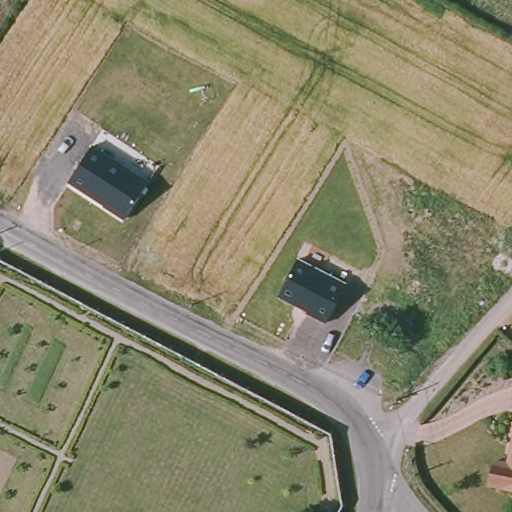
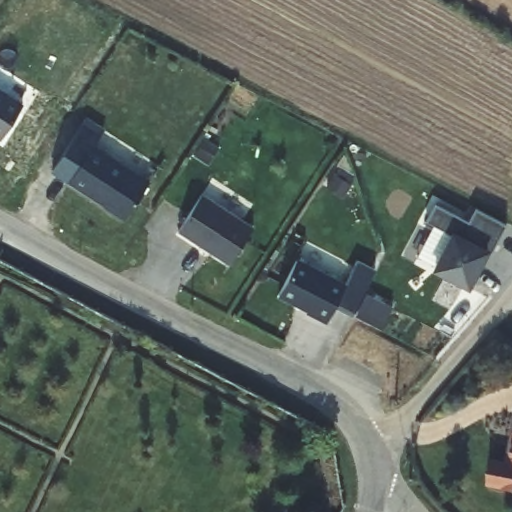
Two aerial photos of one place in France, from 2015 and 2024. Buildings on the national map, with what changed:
new [(24,103),(2,139),(0,138),(0,88),(24,103)]
unchanged [(149,181),(125,218),(104,205),(104,204),(67,180),(90,145),(149,181)]
new [(202,195),(253,228),(230,264),(178,231),(202,195)]
new [(435,203),(468,221),(475,207),(506,224),(491,253),(487,250),(468,286),(435,268),(452,235),(425,221),(435,203)]
unchanged [(346,283),(325,322),(303,313),(304,310),(275,296),(295,255),(346,283)]
unchanged [(489,465),(505,467),(512,427),(512,495),(484,490),(489,465)]

